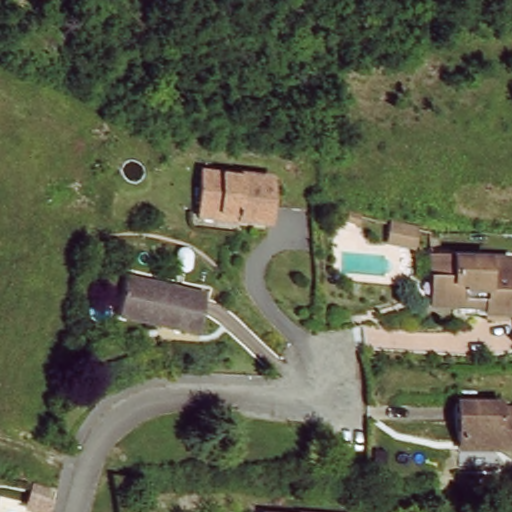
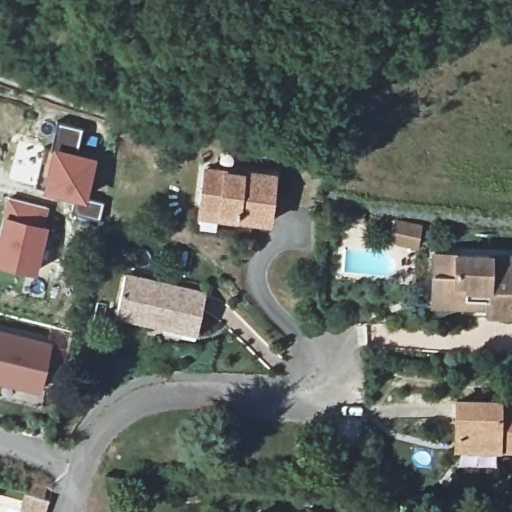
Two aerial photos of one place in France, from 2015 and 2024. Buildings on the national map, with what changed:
new [(44,188),(35,186),(45,148),(50,150),(56,123),(82,130),(77,154),(97,158),(88,199),(103,203),(100,220),(70,212),(72,199),(43,191),(44,188)]
unchanged [(206,199),(215,162),(247,172),(250,168),(283,177),(270,229),(240,221),(202,212),(206,199)]
new [(3,217),(8,197),(51,208),(47,226),(50,227),(37,276),(0,265),(0,228),(3,217)]
unchanged [(441,252),(512,260),(512,312),(492,311),(492,308),(437,301),(438,282),(441,252)]
unchanged [(152,326),(114,316),(125,277),(205,298),(198,327),(195,337),(152,326)]
new [(0,382),(0,330),(52,342),(40,392),(0,382)]
unchanged [(458,408),(495,410),(496,415),(512,416),(512,449),(496,449),(457,447),(457,438),(458,408)]
unchanged [(318,512),(324,512),(302,512),(302,510),(318,512)]

